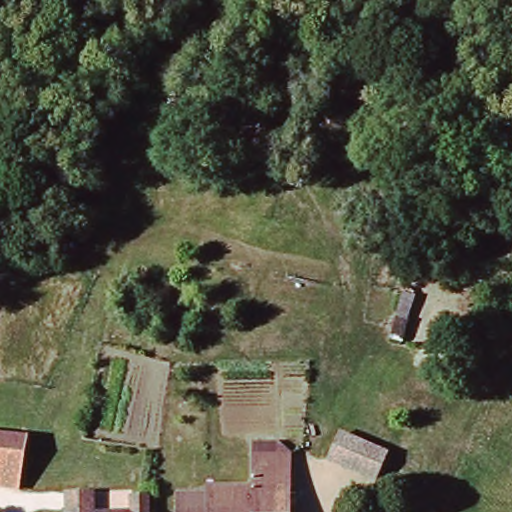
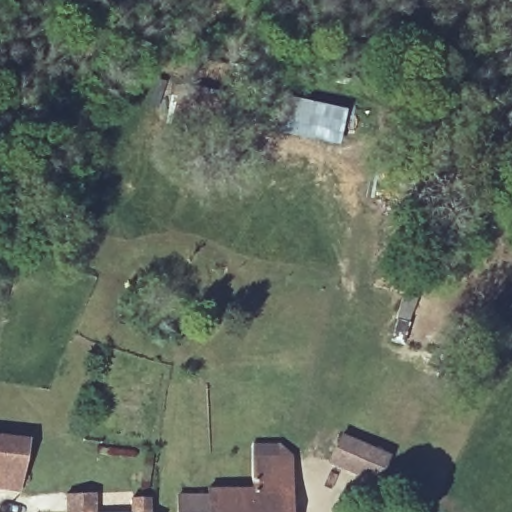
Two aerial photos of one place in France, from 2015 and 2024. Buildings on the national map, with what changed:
new [(278,130),(282,115),(292,109),(294,97),(342,107),(338,124),(343,125),(338,143),(278,130)]
unchanged [(24,437),(16,477),(3,483),(5,470),(0,470),(0,433),(24,437)]
unchanged [(376,481),(342,466),(329,461),(341,434),(354,440),(387,454),(376,481)]
unchanged [(281,457),(295,457),(295,512),(184,512),(184,496),(213,496),(213,487),(254,489),(257,444),(281,445),(281,457)]
unchanged [(96,497),(96,512),(71,512),(70,496),(96,497)]
unchanged [(155,503),(155,512),(134,512),(134,502),(155,503)]

